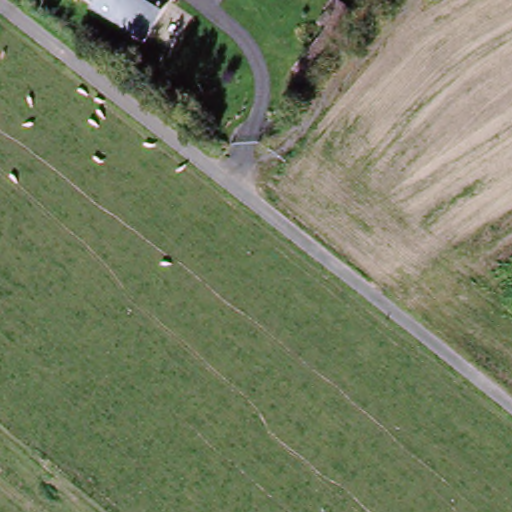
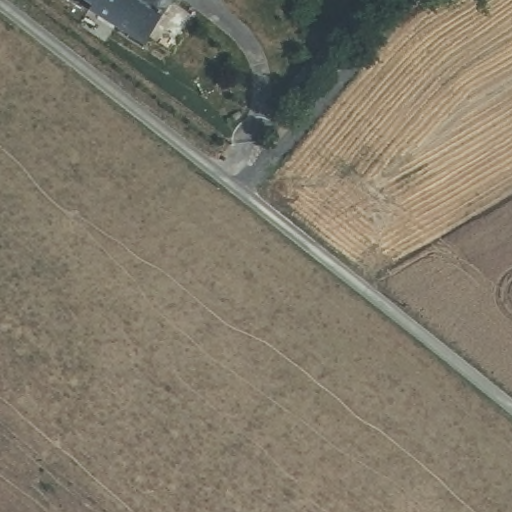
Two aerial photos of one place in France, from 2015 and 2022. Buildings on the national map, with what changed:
unchanged [(108,22),(87,8),(89,5),(81,0),(123,0),(108,22)]
unchanged [(170,2),(146,36),(141,43),(108,22),(123,0),(171,0),(170,2)]

